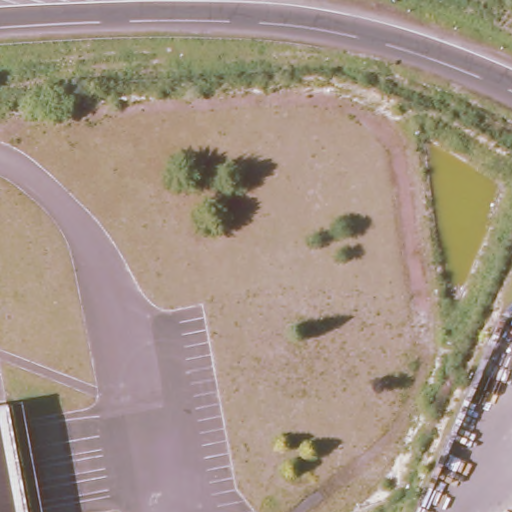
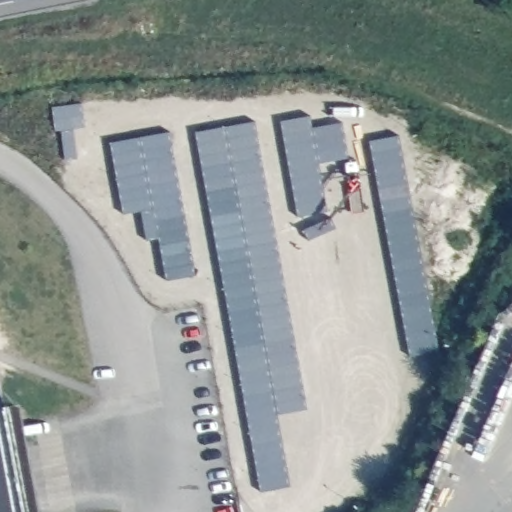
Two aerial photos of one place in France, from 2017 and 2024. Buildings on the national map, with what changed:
new [(85,127),(73,129),(78,159),(66,160),(61,131),(56,131),(53,107),(81,103),(85,127)]
new [(349,158),(321,164),(329,212),(298,217),(281,121),(311,115),(313,128),(341,123),(349,158)]
new [(308,410),(278,414),(291,487),(261,491),(196,133),(254,121),(308,410)]
new [(196,275),(167,279),(160,238),(147,240),(143,212),(124,214),(111,143),(169,133),(196,275)]
new [(439,350),(411,357),(370,141),(398,135),(439,350)]
unchanged [(14,402),(23,444),(36,512),(0,512),(0,404),(14,402)]

